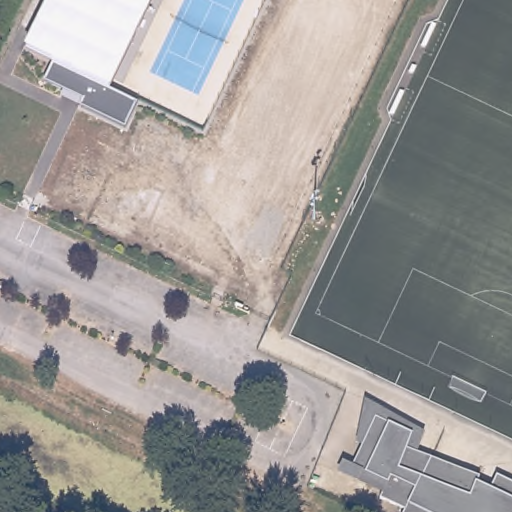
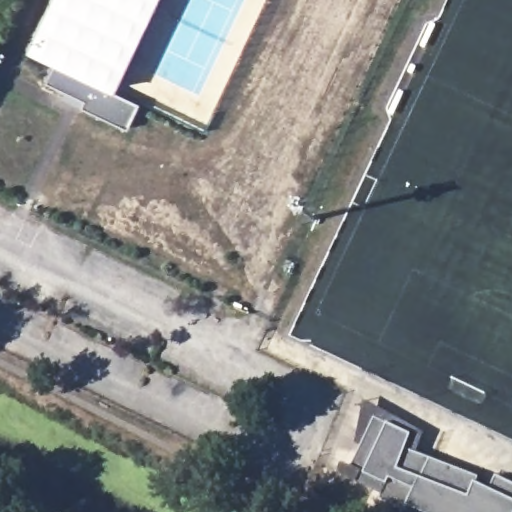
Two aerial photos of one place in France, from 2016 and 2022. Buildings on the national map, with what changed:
unchanged [(135,107),(124,129),(61,100),(65,92),(47,83),(57,65),(24,48),(47,0),(151,0),(107,93),(135,107)]
unchanged [(417,454),(481,476),(480,485),(490,489),(496,473),(512,482),(512,512),(406,512),(406,511),(380,500),(383,494),(336,474),(342,462),(352,467),(363,446),(357,444),(365,400),(426,431),(417,454)]

